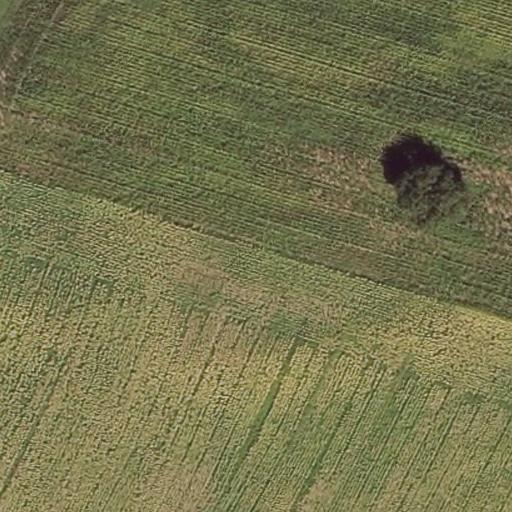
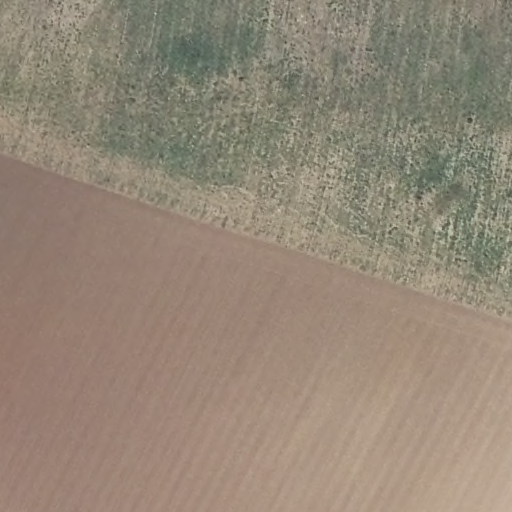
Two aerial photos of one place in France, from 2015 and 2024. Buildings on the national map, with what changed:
[]

